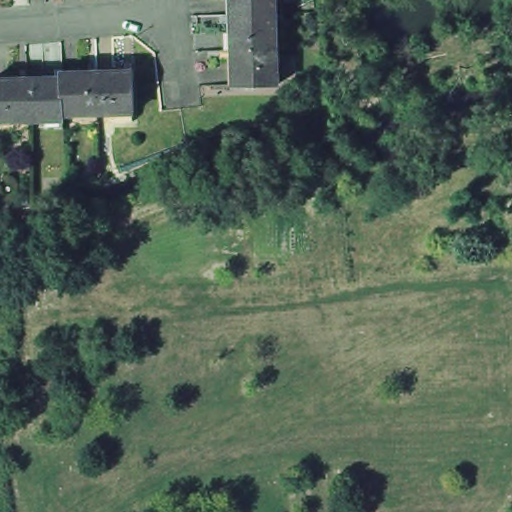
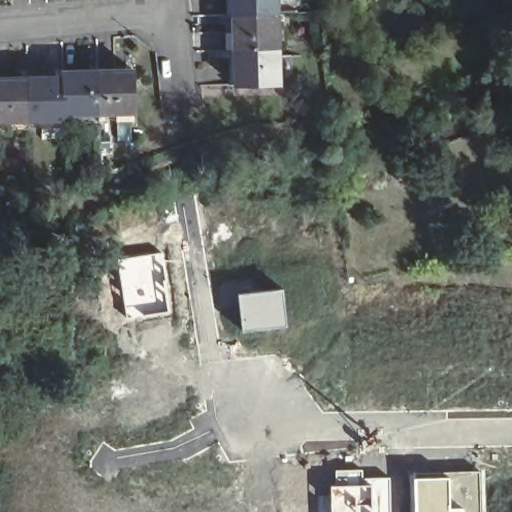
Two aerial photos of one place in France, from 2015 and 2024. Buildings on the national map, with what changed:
unchanged [(233,0),(277,0),(278,14),(233,16),(233,0)]
unchanged [(278,14),(279,49),(234,51),(233,16),(278,14)]
unchanged [(279,49),(279,84),(236,85),(234,51),(279,49)]
unchanged [(59,112),(25,115),(23,73),(58,70),(58,74),(59,112)]
unchanged [(128,70),(131,111),(94,114),(93,72),(128,70)]
unchanged [(94,114),(61,117),(61,112),(59,112),(58,74),(93,72),(94,114)]
unchanged [(25,115),(0,116),(0,75),(23,73),(25,115)]
new [(153,253),(158,284),(166,283),(167,311),(126,316),(116,259),(153,253)]
new [(282,286),(286,324),(241,329),(236,292),(282,286)]
new [(333,468),(363,467),(363,476),(390,475),(391,512),(330,512),(329,483),(334,483),(333,468)]
new [(487,512),(414,512),(412,475),(486,468),(487,512)]

